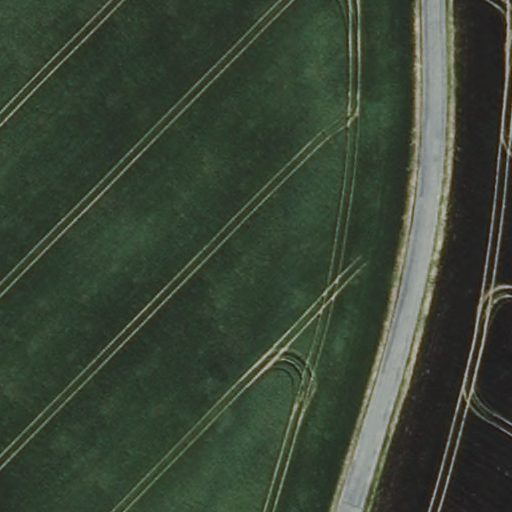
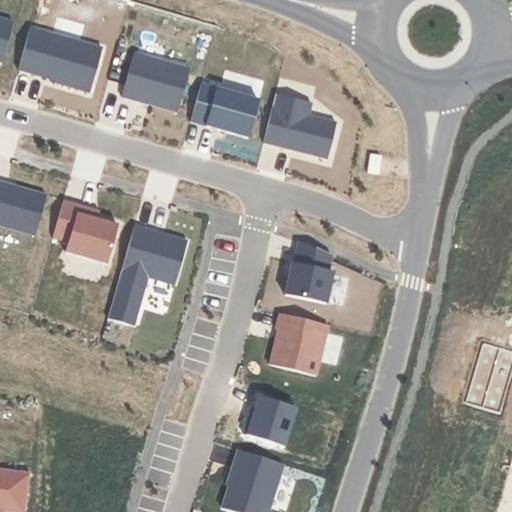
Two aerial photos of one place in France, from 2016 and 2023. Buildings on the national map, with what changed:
new [(2,63),(0,63),(0,19),(13,23),(2,63)]
new [(30,27),(102,49),(90,94),(54,84),(55,81),(42,78),(42,75),(35,73),(35,75),(17,70),(30,27)]
new [(134,53),(190,69),(177,114),(121,98),(134,53)]
new [(201,84),(259,100),(247,139),(190,122),(201,84)]
new [(275,94),(312,104),(309,116),(337,124),(327,160),(262,143),(275,94)]
new [(371,154),(382,156),(379,175),(367,174),(371,154)]
new [(35,236),(0,226),(0,182),(47,195),(35,236)]
new [(81,204),(100,210),(97,219),(117,225),(109,254),(52,238),(63,200),(81,204)]
new [(134,225),(187,242),(175,286),(148,278),(134,327),(107,319),(134,225)]
new [(292,263),(294,264),(299,243),(332,255),(328,271),(334,272),(326,305),(285,295),(292,263)]
new [(278,331),(276,330),(280,314),(329,326),(316,377),(270,365),(278,331)]
new [(249,419),(252,419),(259,397),(297,409),(284,449),(243,436),(249,419)]
new [(229,487),(227,487),(238,451),(282,465),(268,512),(230,512),(222,509),(229,487)]
new [(0,470),(26,473),(30,474),(24,512),(0,512),(0,470)]

